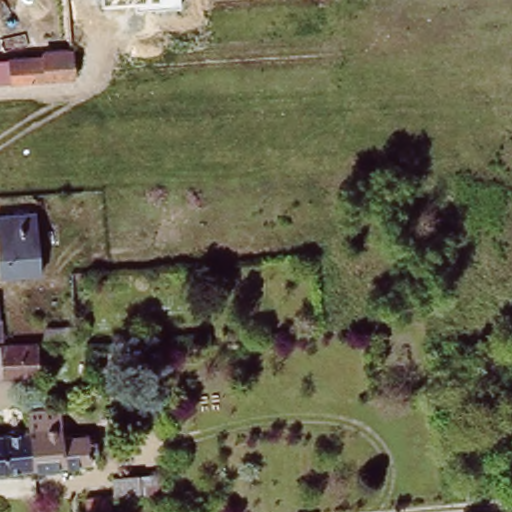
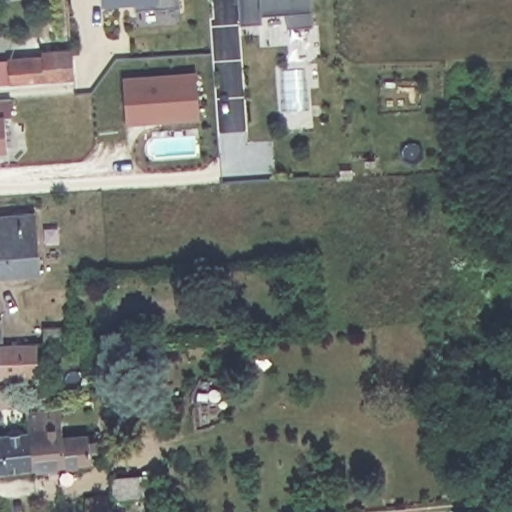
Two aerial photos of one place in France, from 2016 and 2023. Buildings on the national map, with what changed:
new [(181,0),(182,7),(136,11),(136,1),(103,3),(102,0),(181,0)]
new [(287,27),(286,11),(262,12),(263,22),(240,24),(238,0),(312,0),(314,25),(287,27)]
unchanged [(0,85),(0,61),(44,57),(44,54),(72,52),(74,80),(0,85)]
new [(197,73),(200,118),(154,122),(154,120),(144,120),(144,122),(127,124),(124,79),(197,73)]
new [(8,100),(9,116),(2,117),(5,150),(0,150),(0,100),(8,100)]
unchanged [(40,277),(0,280),(0,220),(34,217),(40,277)]
unchanged [(1,300),(2,321),(0,321),(0,300),(1,300)]
unchanged [(76,347),(49,347),(49,333),(76,332),(76,347)]
unchanged [(0,381),(0,348),(41,348),(41,382),(0,381)]
unchanged [(36,438),(35,438),(31,417),(63,414),(67,442),(99,439),(103,467),(63,471),(64,477),(57,477),(56,472),(39,473),(36,438)]
unchanged [(36,438),(39,473),(0,478),(0,441),(35,438),(36,438)]
unchanged [(120,481),(165,479),(166,501),(121,502),(120,481)]
unchanged [(92,503),(116,500),(116,512),(92,512),(92,503)]

